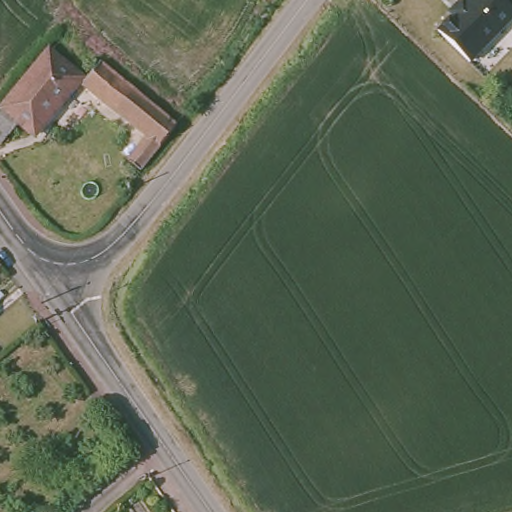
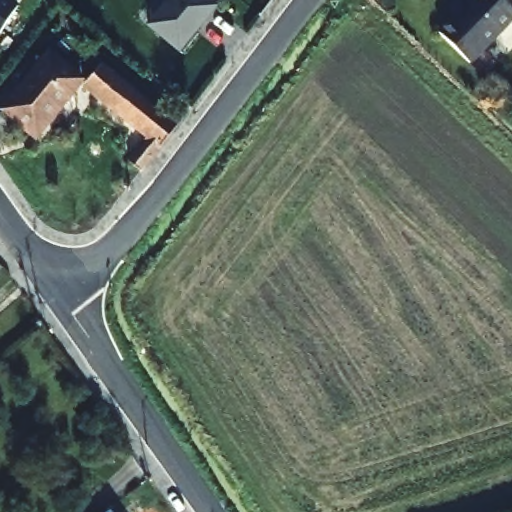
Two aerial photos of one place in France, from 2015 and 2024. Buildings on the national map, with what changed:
new [(0,0),(10,0),(18,6),(0,32),(0,0)]
new [(218,7),(181,53),(145,26),(165,0),(211,0),(218,7)]
unchanged [(512,11),(512,24),(470,65),(438,35),(455,19),(452,14),(464,2),(467,6),(474,0),(502,0),(512,11)]
unchanged [(76,79),(30,135),(15,122),(0,140),(0,109),(46,54),(76,79)]
unchanged [(137,171),(124,161),(143,137),(78,84),(95,63),(172,127),(137,171)]
new [(112,512),(110,512),(111,511),(112,512)]

